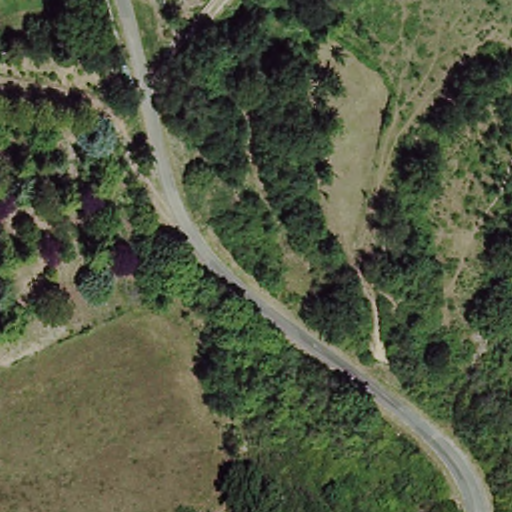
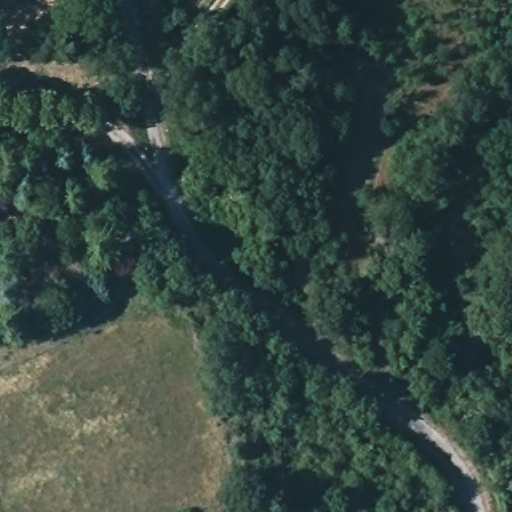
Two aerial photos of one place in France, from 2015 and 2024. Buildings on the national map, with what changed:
[]

